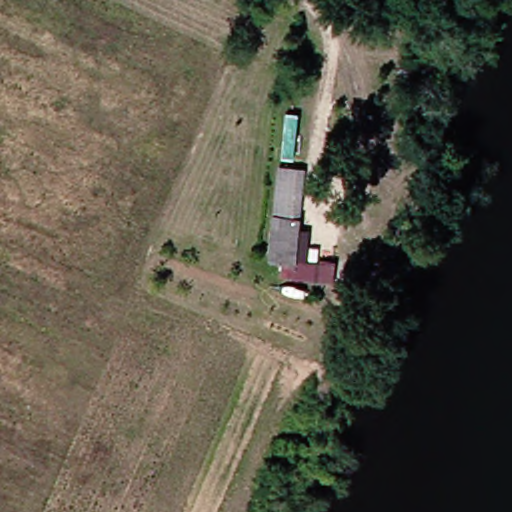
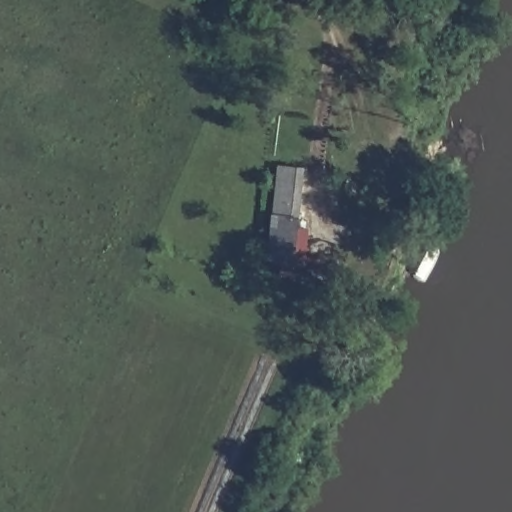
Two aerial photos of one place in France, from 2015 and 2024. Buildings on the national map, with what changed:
unchanged [(299,207),(285,206),(290,166),(303,167),(299,207)]
unchanged [(305,260),(280,257),(284,216),(309,218),(305,260)]

